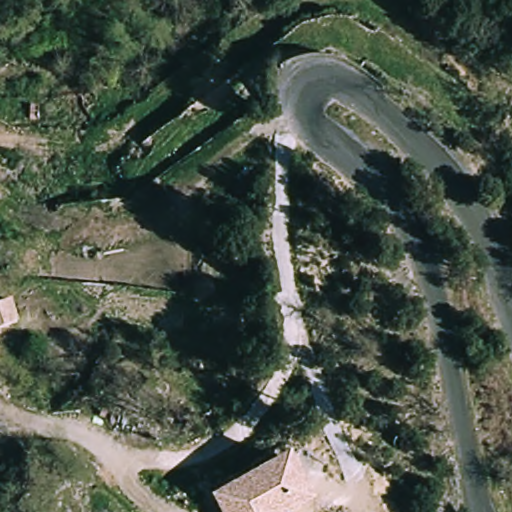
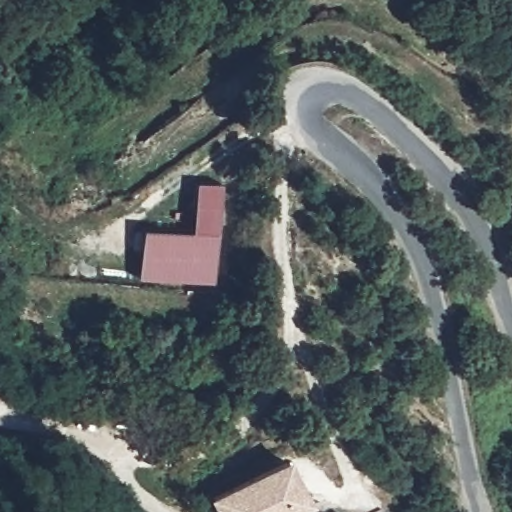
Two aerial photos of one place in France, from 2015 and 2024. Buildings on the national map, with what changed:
new [(217,286),(140,281),(143,228),(193,230),(196,183),(223,184),(217,286)]
unchanged [(21,320),(0,331),(0,297),(10,292),(21,320)]
unchanged [(301,512),(217,512),(211,499),(290,455),(315,505),(301,512)]

